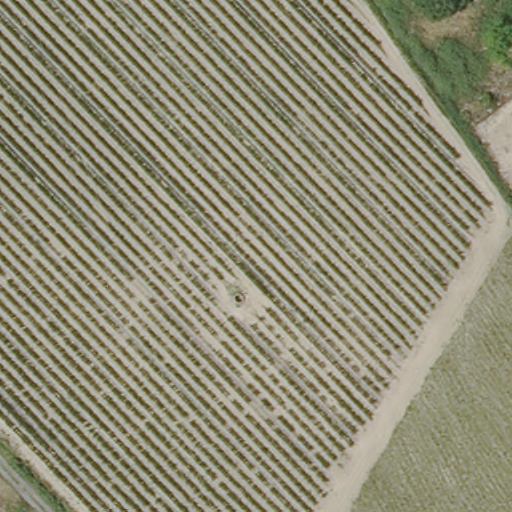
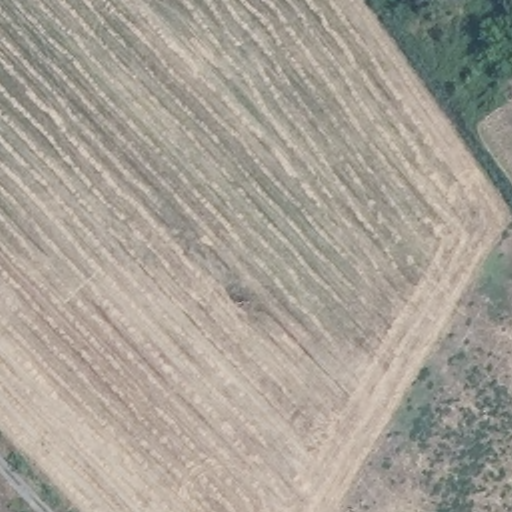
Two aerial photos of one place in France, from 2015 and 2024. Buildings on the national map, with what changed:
unchanged [(248,304),(246,307),(243,309),(241,309),(238,309),(235,307),(233,304),(233,301),(233,298),(235,296),(238,294),(241,293),(243,294),(246,296),(248,298),(248,301),(248,304)]

